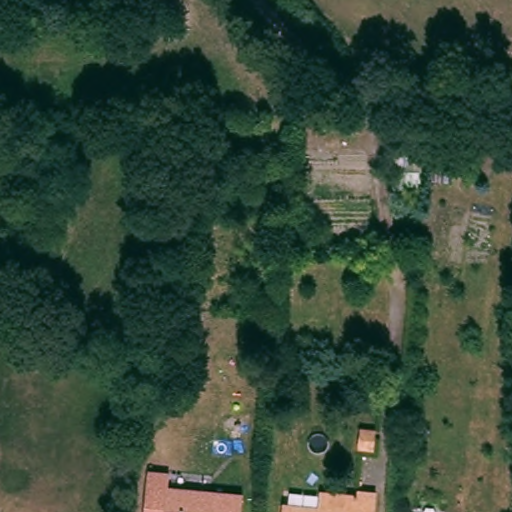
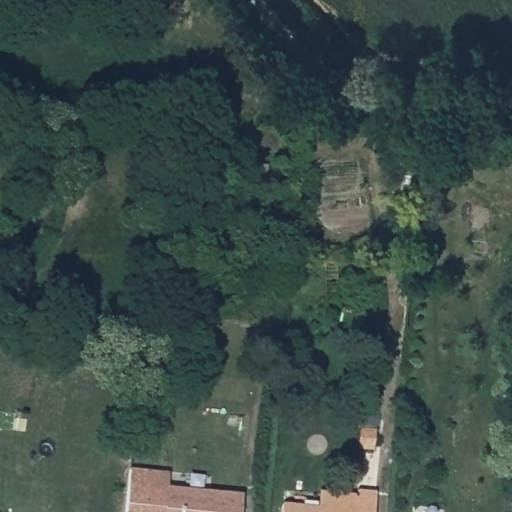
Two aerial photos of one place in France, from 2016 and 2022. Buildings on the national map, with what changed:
unchanged [(428,159),(425,159),(424,188),(395,186),(394,156),(409,157),(410,140),(429,145),(428,159)]
unchanged [(190,495),(265,499),(264,512),(166,512),(170,475),(191,476),(190,495)]
unchanged [(340,491),(376,493),(374,512),(282,512),(282,508),(339,511),(340,491)]

